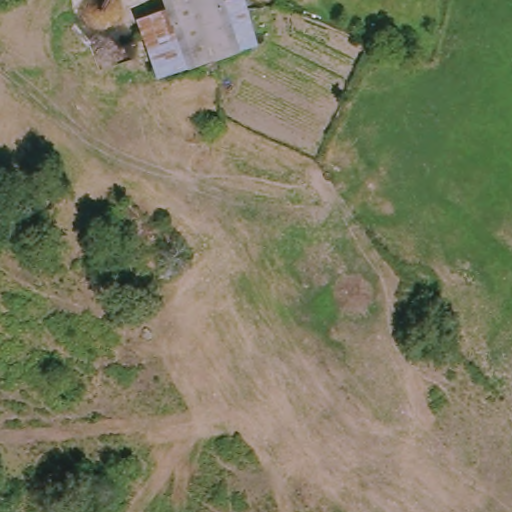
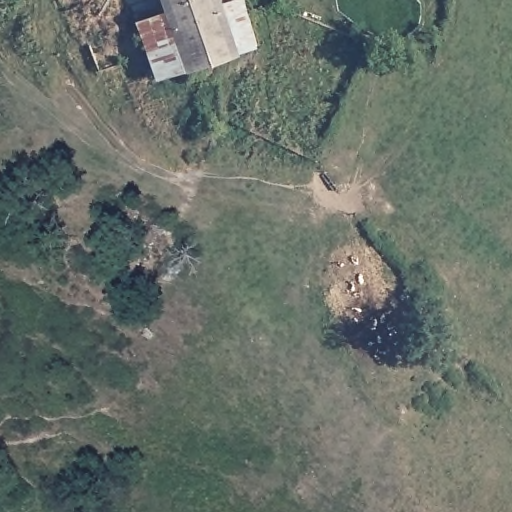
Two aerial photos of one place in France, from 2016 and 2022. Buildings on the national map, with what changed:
unchanged [(162,0),(216,0),(218,6),(233,53),(186,65),(165,7),(162,0)]
unchanged [(218,6),(236,0),(239,0),(254,45),(233,53),(218,6)]
unchanged [(165,7),(186,65),(153,76),(134,17),(165,7)]

